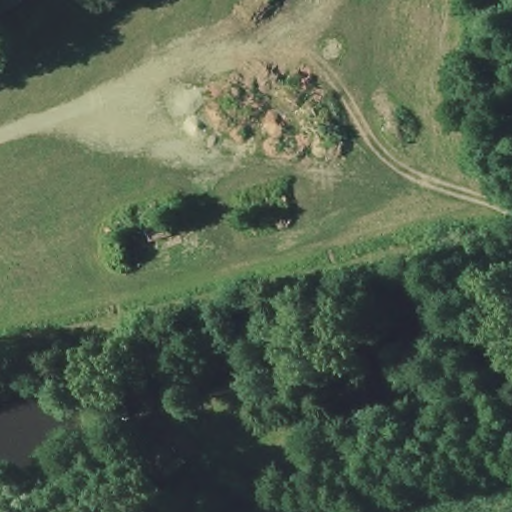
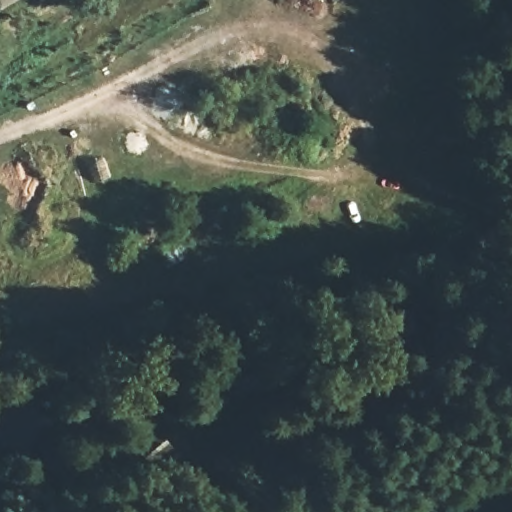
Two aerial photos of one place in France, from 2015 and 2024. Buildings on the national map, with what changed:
unchanged [(182,467),(162,486),(140,462),(160,443),(182,467)]

